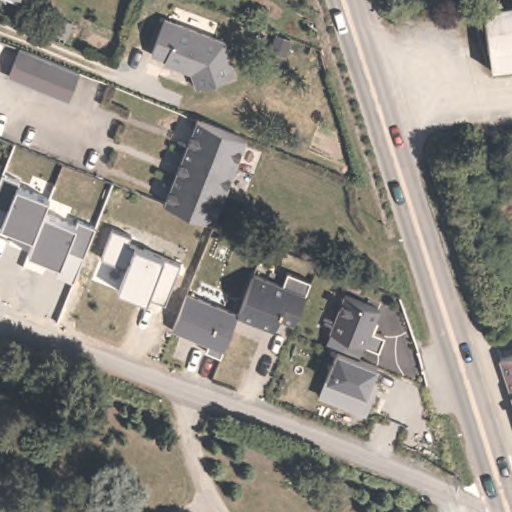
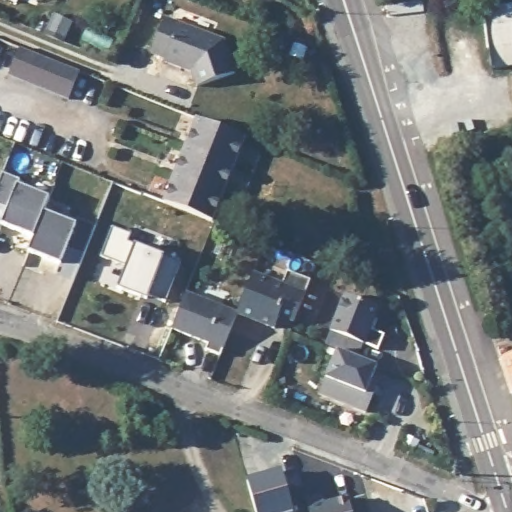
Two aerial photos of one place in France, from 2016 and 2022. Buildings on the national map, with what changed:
unchanged [(497,70),(486,0),(512,0),(512,68),(497,70)]
unchanged [(227,42),(238,76),(199,89),(195,73),(167,61),(168,59),(153,52),(167,18),(227,42)]
unchanged [(68,98),(8,73),(20,45),(81,70),(68,98)]
unchanged [(200,115),(248,134),(214,217),(166,198),(200,115)]
unchanged [(19,179),(16,185),(1,223),(0,225),(0,176),(1,173),(19,179)]
unchanged [(30,253),(35,237),(1,223),(16,185),(48,198),(43,213),(75,224),(66,247),(60,263),(30,253)]
unchanged [(55,276),(60,263),(66,247),(75,224),(78,220),(95,226),(71,282),(55,276)]
unchanged [(117,288),(126,265),(101,256),(111,227),(130,235),(128,242),(134,245),(164,256),(179,263),(165,301),(146,299),(117,288)]
unchanged [(296,324),(279,318),(276,331),(238,317),(255,274),(282,285),(288,271),(312,281),(296,324)]
unchanged [(378,307),(371,329),(382,336),(378,351),(363,346),(358,359),(380,369),(366,414),(320,397),(337,353),(324,346),(345,293),(378,307)]
unchanged [(238,317),(223,360),(204,352),(207,343),(172,330),(187,294),(238,317)]
unchanged [(509,353),(512,352),(512,366),(509,353)]
new [(283,469),(295,512),(256,512),(247,480),(283,469)]
unchanged [(308,504),(346,494),(351,512),(309,512),(308,504)]

